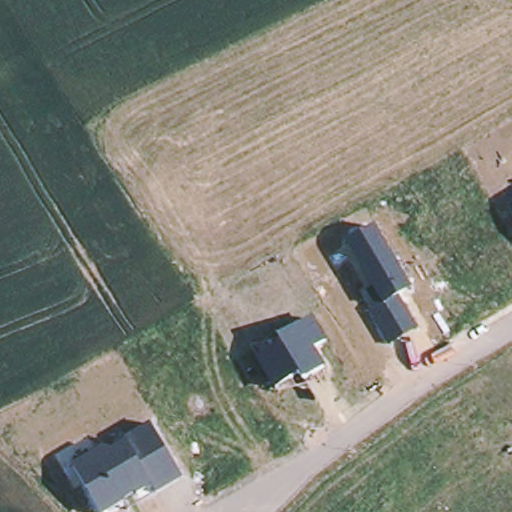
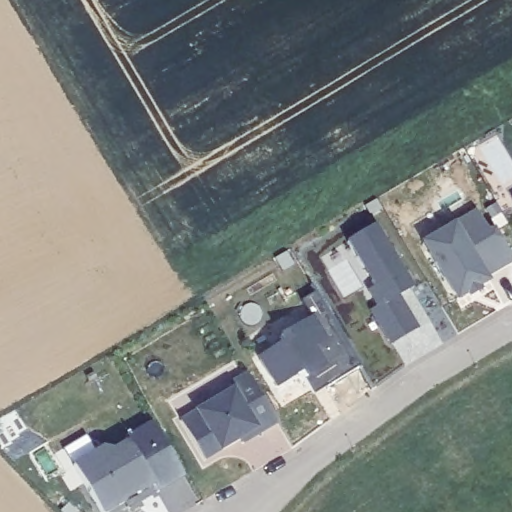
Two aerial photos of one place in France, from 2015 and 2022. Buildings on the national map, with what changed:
new [(420,240),(453,222),(476,210),(487,229),(494,225),(502,239),(512,260),(512,263),(486,278),(489,282),(479,288),(481,292),(468,301),(466,296),(456,303),(420,240)]
unchanged [(366,310),(374,304),(366,291),(373,288),(346,242),(376,225),(412,289),(399,297),(418,328),(389,345),(366,310)]
unchanged [(258,359),(283,343),(279,336),(314,318),(326,341),(314,348),(326,366),(304,379),(301,373),(275,389),(258,359)]
new [(239,440),(221,451),(203,461),(178,419),(194,410),(233,387),(229,380),(248,371),(279,424),(243,444),(239,440)]
unchanged [(73,466),(105,446),(109,449),(149,424),(183,479),(158,494),(152,486),(107,512),(101,512),(73,466)]

